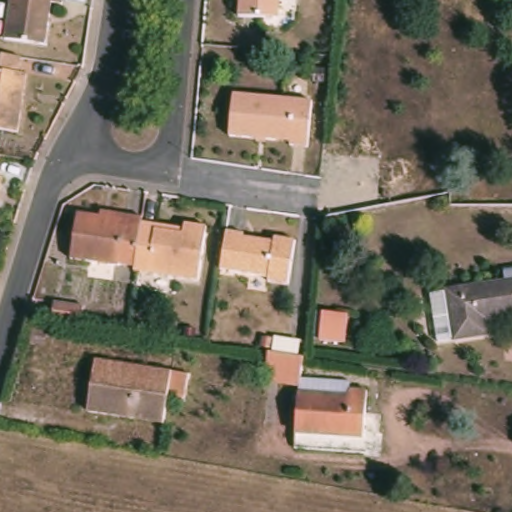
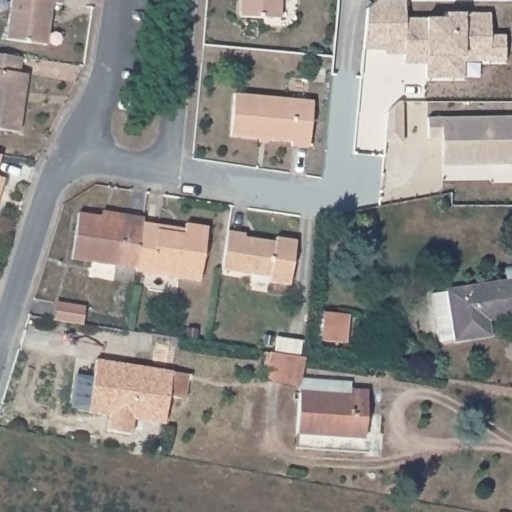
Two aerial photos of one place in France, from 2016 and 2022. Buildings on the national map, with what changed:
unchanged [(8,0),(60,0),(59,8),(49,7),(42,50),(2,45),(8,0)]
unchanged [(273,19),(235,17),(236,0),(275,0),(273,19)]
new [(366,10),(377,0),(405,0),(405,18),(425,18),(446,18),(445,12),(465,12),(489,13),(490,34),(505,35),(505,63),(463,63),(463,79),(425,80),(425,64),(403,63),(403,55),(385,54),(385,50),(362,51),(366,10)]
unchanged [(25,74),(16,133),(0,131),(0,55),(17,57),(15,73),(25,74)]
unchanged [(231,96),(308,102),(305,149),(286,147),(287,143),(227,137),(231,96)]
new [(387,113),(398,103),(402,103),(402,118),(403,145),(385,143),(387,118),(387,113)]
new [(442,139),(428,140),(427,119),(512,118),(512,166),(490,166),(442,167),(442,139)]
unchanged [(0,192),(0,181),(4,181),(0,192)]
unchanged [(121,267),(65,259),(70,213),(94,216),(95,211),(117,214),(142,218),(141,224),(135,266),(121,264),(121,267)]
unchanged [(141,224),(158,226),(185,230),(185,223),(207,227),(198,280),(135,271),(135,266),(141,224)]
unchanged [(240,235),(240,238),(269,242),(270,238),(292,241),(285,284),(263,282),(264,277),(216,269),(222,232),(240,235)]
unchanged [(427,296),(512,282),(512,314),(480,319),(482,335),(434,342),(427,296)]
unchanged [(57,302),(84,306),(81,325),(55,321),(57,302)]
unchanged [(323,311),(341,313),(338,343),(321,340),(323,311)]
unchanged [(88,395),(85,394),(91,361),(135,368),(167,373),(184,375),(180,400),(164,398),(160,419),(160,425),(127,420),(85,414),(88,395)]
unchanged [(299,368),(297,389),(345,391),(345,401),(362,402),(359,447),(290,443),(293,394),(260,390),(264,363),(299,368)]

